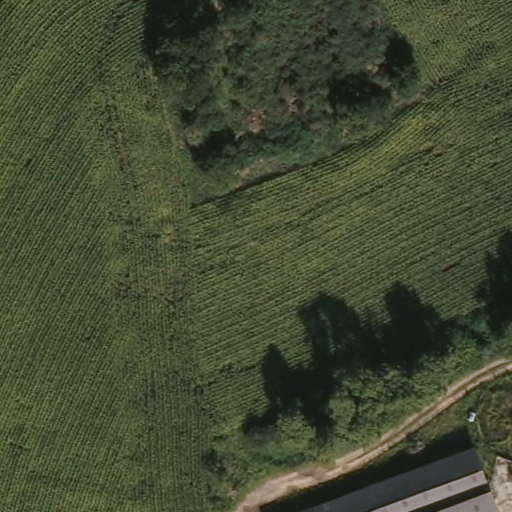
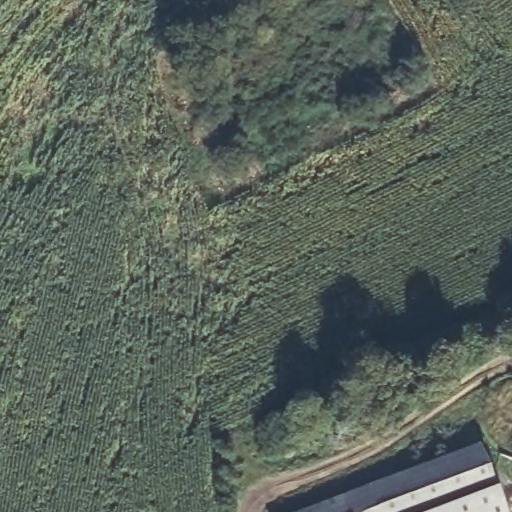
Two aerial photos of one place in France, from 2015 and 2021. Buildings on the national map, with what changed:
unchanged [(512,509),(512,512),(290,512),(485,443),(512,509)]

